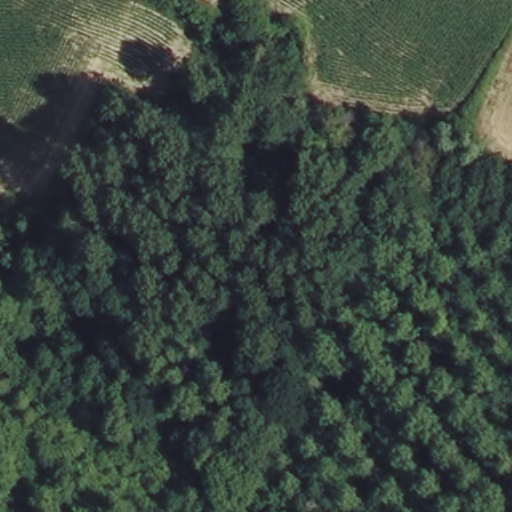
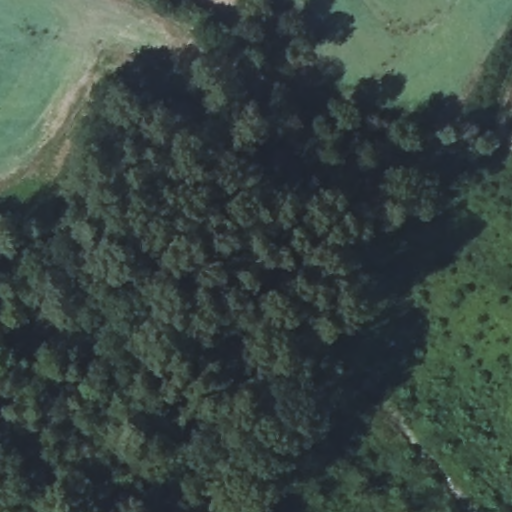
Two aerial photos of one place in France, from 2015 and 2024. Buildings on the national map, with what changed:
unchanged [(273,22),(267,0),(296,0),(300,17),(273,22)]

